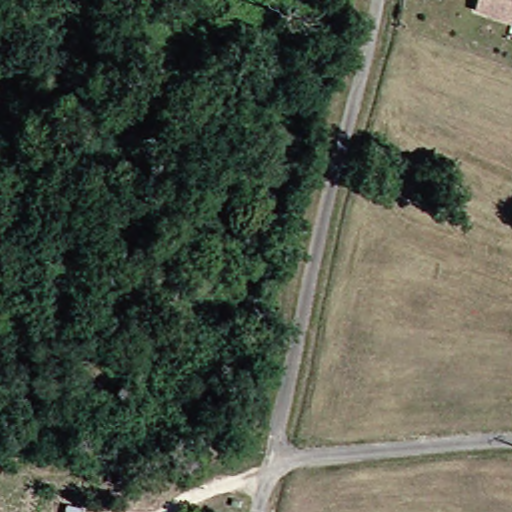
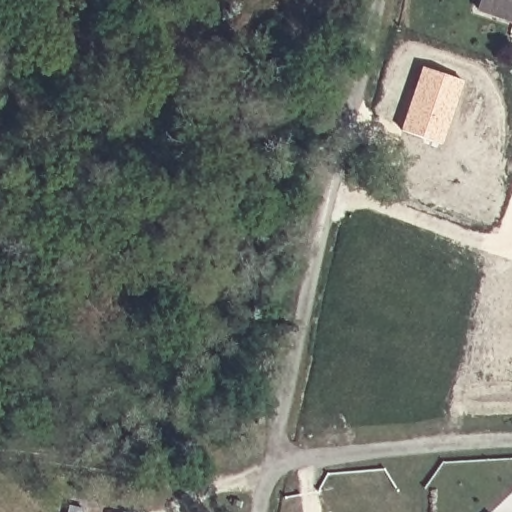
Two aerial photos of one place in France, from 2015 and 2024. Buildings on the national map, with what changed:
unchanged [(481,8),(483,0),(512,0),(512,19),(481,8)]
new [(442,145),(400,130),(422,66),(465,81),(442,145)]

